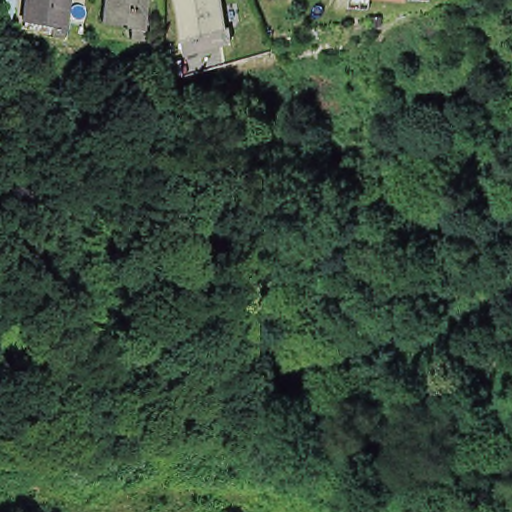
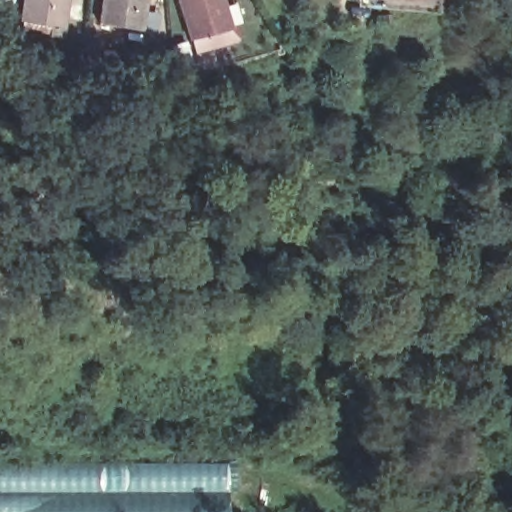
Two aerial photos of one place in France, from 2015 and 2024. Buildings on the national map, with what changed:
unchanged [(23,0),(67,0),(64,17),(61,28),(48,26),(50,16),(21,9),(23,0)]
unchanged [(131,35),(132,22),(105,16),(108,0),(151,0),(143,38),(131,35)]
unchanged [(193,47),(190,33),(188,33),(181,0),(229,0),(234,22),(238,21),(241,32),(238,36),(193,47)]
new [(241,512),(0,512),(0,465),(240,462),(241,512)]

